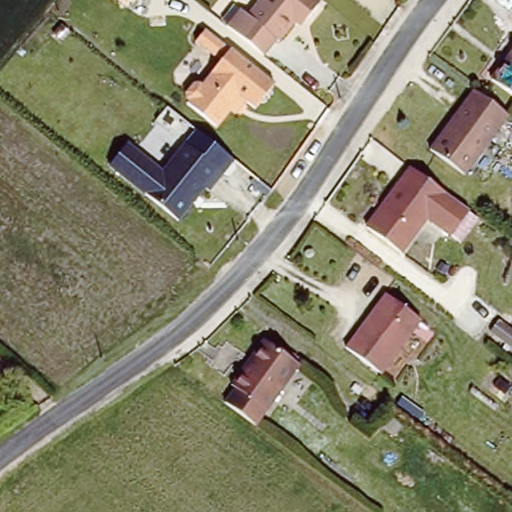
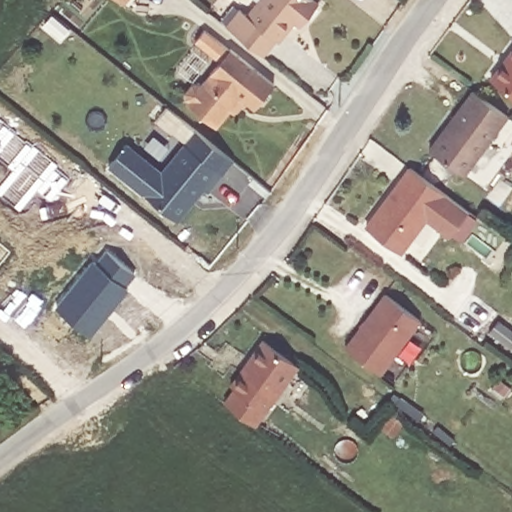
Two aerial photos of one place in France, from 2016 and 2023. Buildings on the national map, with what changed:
unchanged [(123,2),(121,0),(125,0),(123,2)]
unchanged [(301,20),(286,38),(283,36),(268,55),(227,22),(243,3),(251,10),(260,0),(323,0),(326,2),(312,18),(306,25),(301,20)]
new [(53,19),(70,33),(63,42),(45,28),(53,19)]
unchanged [(231,111),(218,127),(188,103),(189,100),(187,98),(186,92),(194,83),(200,82),(203,84),(221,62),(203,47),(212,35),(231,50),(231,49),(275,85),(255,109),(246,102),(235,115),(231,111)]
unchanged [(512,89),(492,74),(512,47),(512,89)]
unchanged [(476,87),(509,112),(465,172),(432,147),(476,87)]
unchanged [(198,130),(230,162),(208,191),(203,188),(176,223),(141,196),(198,130)]
unchanged [(141,190),(105,166),(131,136),(165,163),(141,190)]
unchanged [(408,162),(472,213),(457,238),(428,219),(402,249),(364,221),(408,162)]
new [(93,260),(96,262),(106,250),(134,272),(124,284),(127,287),(89,334),(55,306),(93,260)]
unchanged [(419,323),(384,365),(351,339),(387,295),(419,323)]
unchanged [(512,352),(497,340),(507,326),(512,330),(512,352)]
unchanged [(264,334),(303,362),(256,424),(223,399),(236,381),(231,378),(240,366),(244,370),(253,358),(248,355),(264,334)]
unchanged [(499,376),(511,385),(501,399),(489,390),(499,376)]

